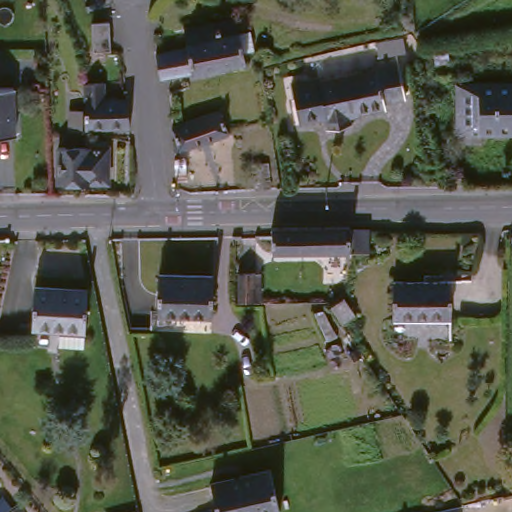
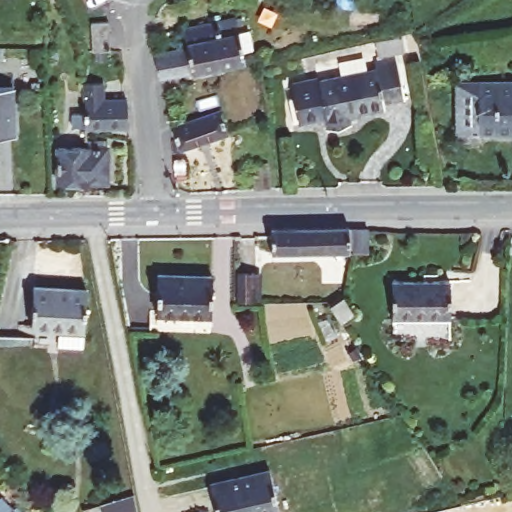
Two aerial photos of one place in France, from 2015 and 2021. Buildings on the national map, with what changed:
unchanged [(184,29),(189,29),(235,20),(238,34),(240,34),(252,31),(256,51),(249,53),(248,51),(244,52),(246,59),(247,64),(184,75),(167,79),(159,79),(155,53),(186,46),(184,29)]
unchanged [(93,36),(92,26),(108,25),(109,35),(110,53),(94,54),(93,36)]
unchanged [(408,101),(386,104),(388,114),(299,124),(296,84),(370,76),(368,66),(397,61),(408,101)]
unchanged [(108,83),(109,101),(131,101),(133,129),(91,130),(89,102),(88,84),(108,83)]
unchanged [(451,86),(512,84),(512,136),(454,139),(451,86)]
unchanged [(0,134),(0,89),(13,88),(14,134),(0,134)]
unchanged [(174,154),(171,144),(175,141),(172,128),(194,120),(219,114),(228,136),(174,154)]
unchanged [(100,144),(91,144),(91,140),(97,140),(99,140),(100,144)]
unchanged [(64,184),(64,149),(112,149),(112,184),(64,184)]
unchanged [(253,186),(251,163),(263,162),(264,185),(253,186)]
unchanged [(184,163),(185,176),(176,177),(174,164),(184,163)]
unchanged [(271,254),(271,236),(270,228),(348,228),(348,230),(369,230),(366,254),(349,255),(271,254)]
unchanged [(241,272),(257,271),(264,270),(266,297),(258,298),(242,299),(241,272)]
unchanged [(161,314),(164,275),(214,279),(212,319),(161,314)]
unchanged [(463,279),(463,320),(390,320),(389,282),(463,279)]
unchanged [(60,343),(62,324),(36,323),(38,283),(89,287),(86,327),(84,327),(84,344),(60,343)]
unchanged [(341,304),(351,299),(353,304),(361,318),(347,324),(336,305),(341,304)]
unchanged [(215,484),(275,474),(282,512),(220,512),(215,484)]

